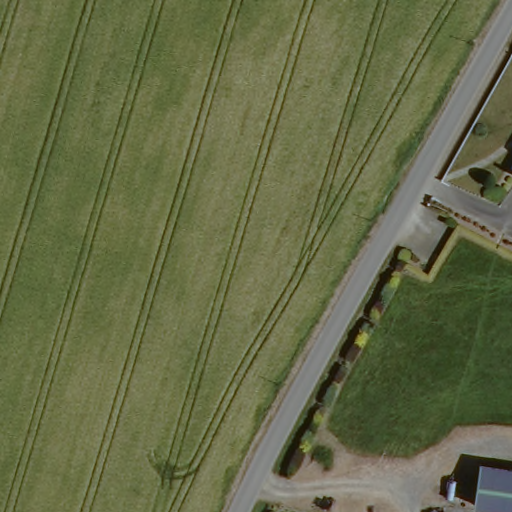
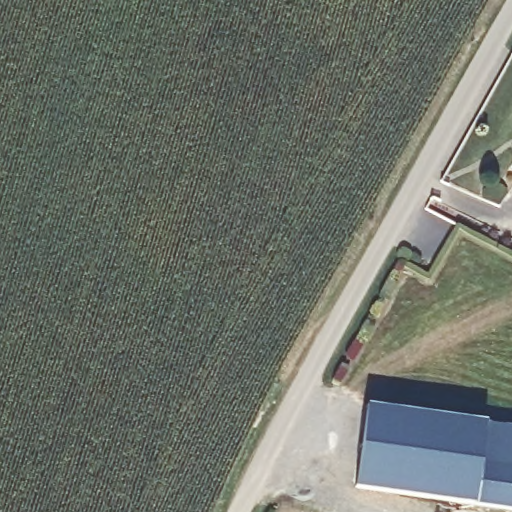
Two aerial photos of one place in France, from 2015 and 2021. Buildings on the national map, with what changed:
new [(355,490),(366,407),(485,423),(512,427),(512,512),(475,506),(355,490)]

